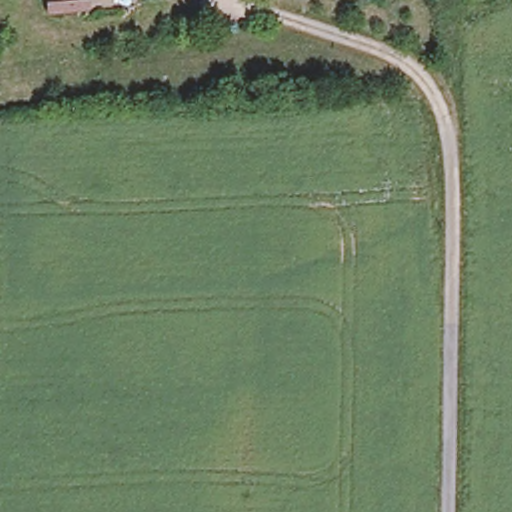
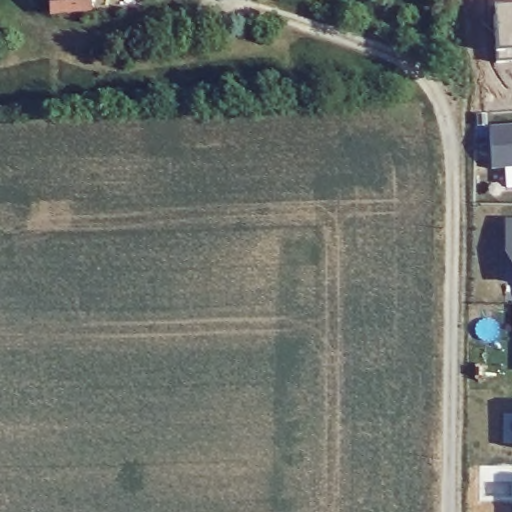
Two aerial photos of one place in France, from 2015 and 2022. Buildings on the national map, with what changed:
unchanged [(49,8),(48,0),(84,0),(84,4),(49,8)]
new [(495,15),(494,7),(512,6),(512,61),(495,61),(493,16),(495,15)]
new [(512,167),(492,168),(490,127),(512,126),(512,167)]
new [(507,223),(512,223),(512,253),(506,253),(507,223)]

